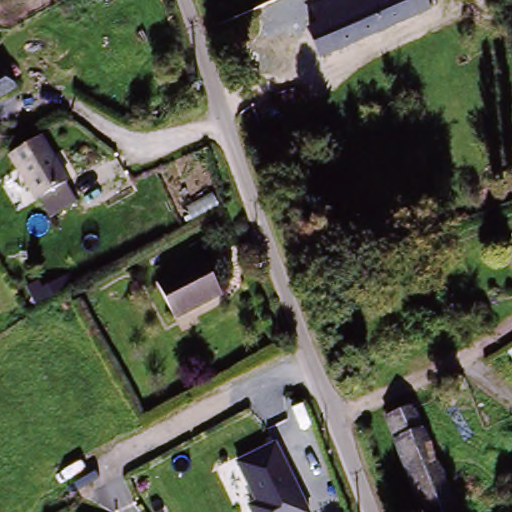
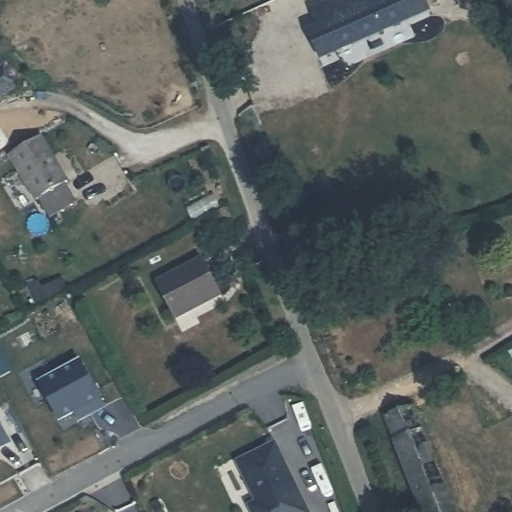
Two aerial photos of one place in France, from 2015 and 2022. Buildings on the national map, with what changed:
unchanged [(335,0),(375,0),(376,4),(316,30),(308,12),(335,0)]
unchanged [(316,30),(376,4),(375,0),(428,0),(433,11),(398,26),(337,52),(327,56),(316,30)]
unchanged [(0,68),(16,90),(0,100),(0,68)]
unchanged [(80,202),(55,218),(44,197),(39,200),(15,154),(43,135),(80,202)]
unchanged [(200,258),(220,294),(172,321),(151,285),(200,258)]
new [(77,364),(102,409),(87,417),(83,409),(59,422),(39,386),(77,364)]
unchanged [(410,411),(451,512),(421,512),(385,422),(410,411)]
new [(11,443),(0,449),(0,422),(11,443)]
unchanged [(308,512),(254,512),(250,505),(257,503),(241,459),(277,443),(308,512)]

